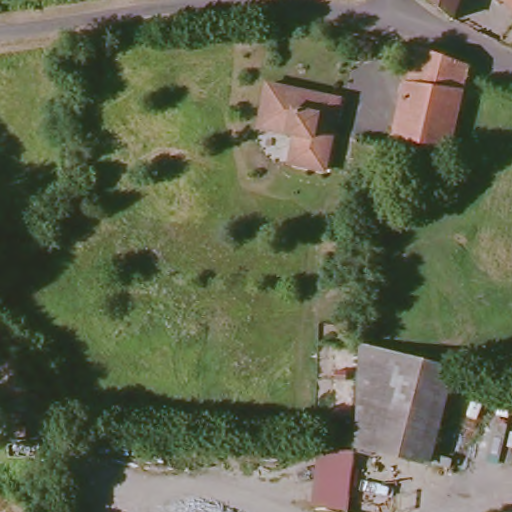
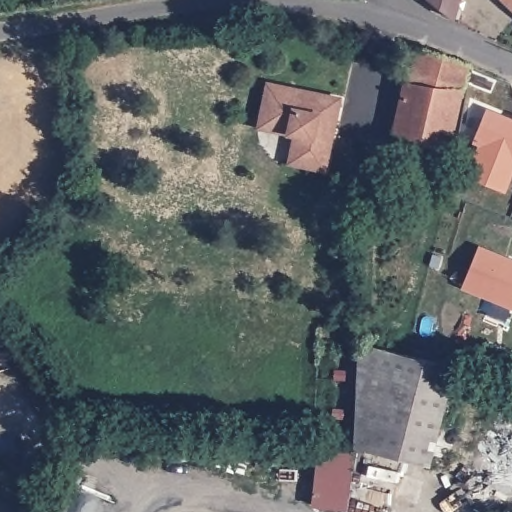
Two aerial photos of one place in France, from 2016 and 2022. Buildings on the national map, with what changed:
unchanged [(429,0),(453,0),(448,15),(429,0)]
unchanged [(512,0),(512,10),(501,0),(512,0)]
unchanged [(465,66),(461,89),(448,147),(390,139),(404,83),(408,84),(418,50),(465,66)]
unchanged [(254,116),(262,80),(333,94),(318,165),(284,157),(289,130),(282,129),(253,122),(254,116)]
new [(466,176),(477,145),(472,143),(487,107),(512,117),(512,177),(506,192),(466,176)]
new [(479,245),(512,259),(512,308),(461,287),(479,245)]
unchanged [(441,468),(422,462),(348,443),(352,341),(447,366),(425,453),(443,458),(441,468)]
demolished [(490,404),(506,408),(491,460),(474,454),(490,404)]
unchanged [(344,510),(310,504),(318,445),(351,451),(344,510)]

